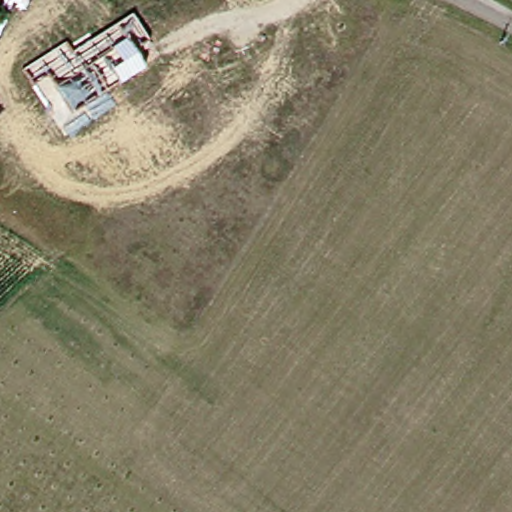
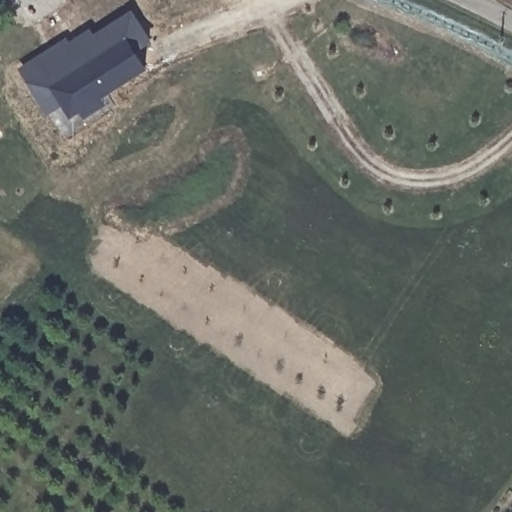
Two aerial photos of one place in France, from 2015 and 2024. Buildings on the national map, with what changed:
new [(22,69),(65,41),(72,51),(132,14),(149,41),(134,51),(144,68),(106,92),(71,114),(47,75),(32,85),(22,69)]
new [(47,75),(71,114),(106,92),(114,104),(64,135),(32,85),(47,75)]

